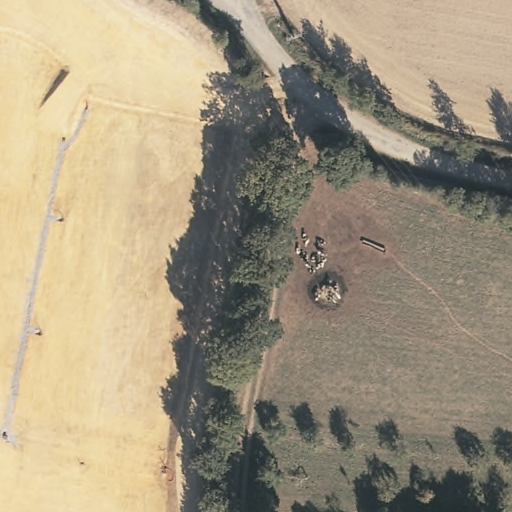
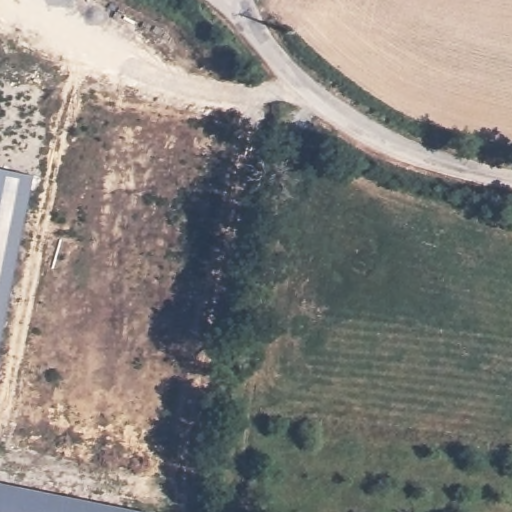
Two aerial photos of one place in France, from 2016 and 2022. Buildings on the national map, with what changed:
new [(32,174),(0,337),(0,168),(32,174)]
new [(147,512),(0,512),(0,481),(147,512)]

